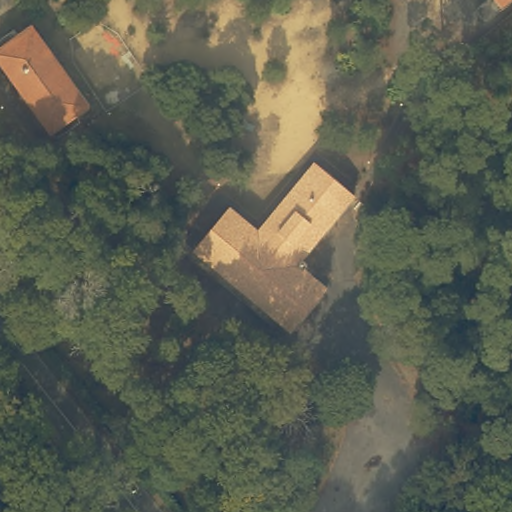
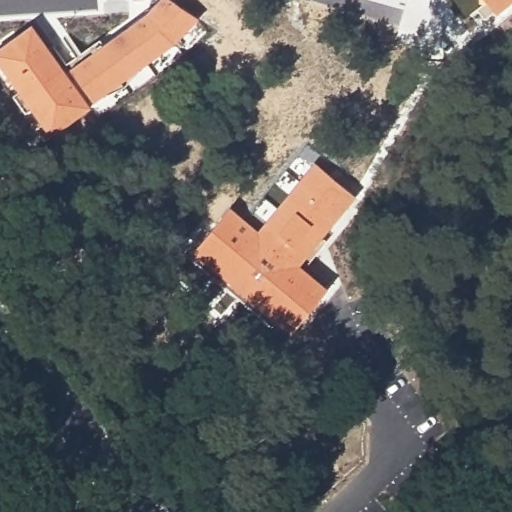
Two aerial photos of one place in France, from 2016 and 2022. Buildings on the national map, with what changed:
new [(141,14),(153,0),(167,0),(195,21),(174,45),(87,104),(59,67),(141,14)]
unchanged [(471,9),(482,0),(510,0),(480,22),(471,9)]
unchanged [(47,134),(0,69),(0,47),(29,27),(87,104),(47,134)]
unchanged [(354,191),(299,263),(327,286),(289,331),(195,253),(229,210),(259,233),(317,162),(354,191)]

